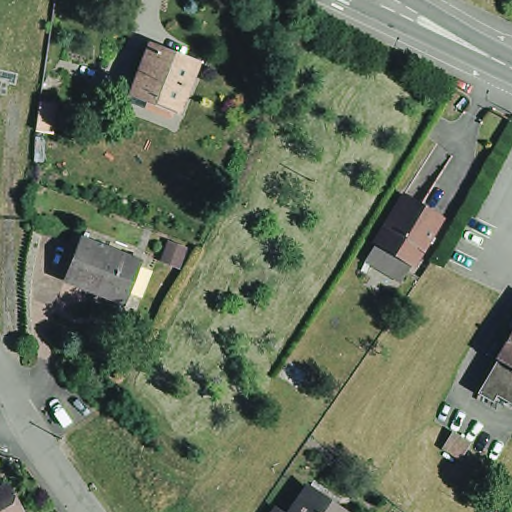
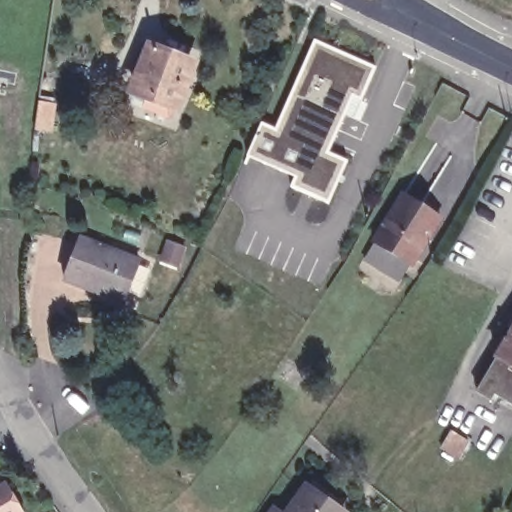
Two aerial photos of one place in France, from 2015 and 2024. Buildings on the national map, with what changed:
new [(261,124),(276,130),(315,41),(375,68),(361,100),(353,96),(328,153),(348,161),(329,202),(292,186),(296,178),(247,155),(261,124)]
unchanged [(150,50),(156,52),(158,47),(197,62),(173,118),(150,108),(153,99),(140,93),(149,70),(143,68),(150,50)]
unchanged [(34,129),(34,122),(37,100),(53,102),(49,124),(49,130),(34,129)]
unchanged [(409,192),(449,218),(416,270),(411,268),(402,282),(369,264),(409,192)]
unchanged [(136,265),(120,307),(61,285),(78,242),(136,265)]
unchanged [(512,325),(512,337),(507,335),(512,325)]
unchanged [(496,366),(512,339),(512,376),(504,387),(491,379),(498,367),(496,366)]
unchanged [(449,440),(467,451),(458,467),(440,456),(449,440)]
unchanged [(305,490),(337,512),(289,512),(305,490)]
unchanged [(4,491),(16,512),(0,512),(0,494),(4,491)]

